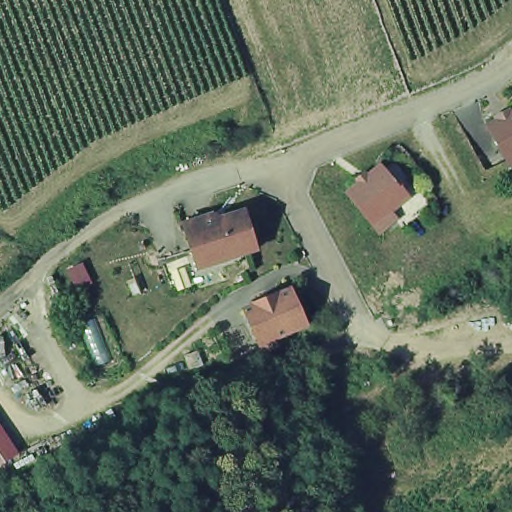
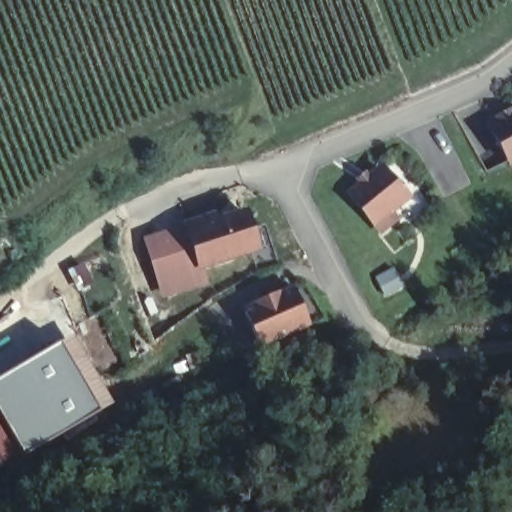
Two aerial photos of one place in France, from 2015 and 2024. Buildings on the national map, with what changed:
unchanged [(509,160),(489,124),(498,118),(497,115),(504,111),(507,109),(509,113),(512,111),(512,158),(509,160)]
unchanged [(382,180),(385,178),(400,196),(383,211),(388,218),(375,229),(344,190),(355,181),(352,178),(358,173),(362,176),(372,167),(382,180)]
unchanged [(217,212),(225,217),(247,210),(253,229),(250,235),(255,249),(203,266),(189,221),(217,212)]
new [(207,284),(162,299),(142,236),(189,221),(203,266),(207,284)]
new [(393,267),(405,290),(385,299),(375,279),(393,267)]
unchanged [(267,354),(263,348),(262,348),(247,313),(257,308),(257,306),(281,295),(282,298),(295,292),(311,326),(277,341),(281,349),(267,354)]
new [(112,402),(26,453),(0,410),(0,373),(70,332),(112,402)]
unchanged [(0,462),(0,425),(17,451),(0,462)]

